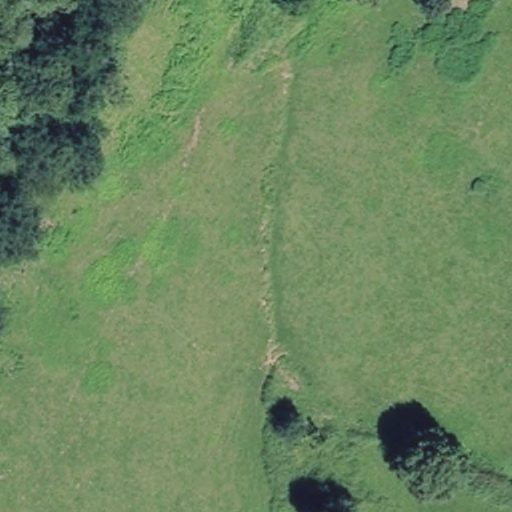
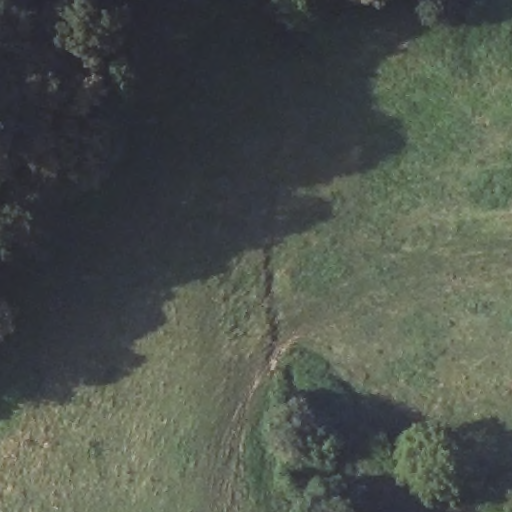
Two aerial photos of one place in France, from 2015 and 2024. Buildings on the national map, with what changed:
unchanged [(433,0),(441,0),(437,4),(433,0)]

